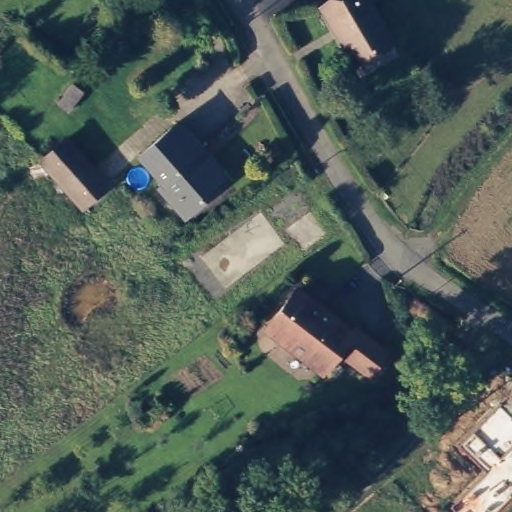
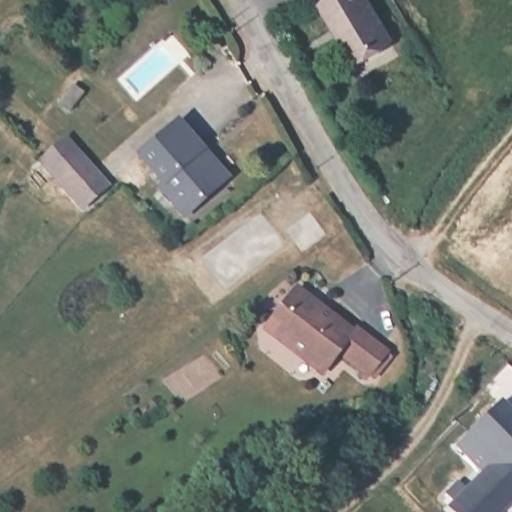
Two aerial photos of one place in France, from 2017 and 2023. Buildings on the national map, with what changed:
unchanged [(389,40),(354,61),(323,8),(336,0),(365,0),(389,40)]
unchanged [(55,100),(68,81),(72,87),(81,95),(68,111),(59,104),(55,100)]
unchanged [(173,117),(198,145),(190,152),(214,180),(180,210),(154,181),(159,177),(135,150),(173,117)]
unchanged [(46,156),(70,134),(111,180),(88,201),(74,186),(64,195),(38,166),(48,157),(46,156)]
unchanged [(387,342),(369,366),(338,342),(323,362),(266,318),(296,279),(309,289),(308,292),(316,298),(318,296),(351,322),(355,317),(387,342)]
new [(482,473),(456,445),(502,401),(512,411),(512,502),(502,512),(453,512),(448,507),(482,473)]

